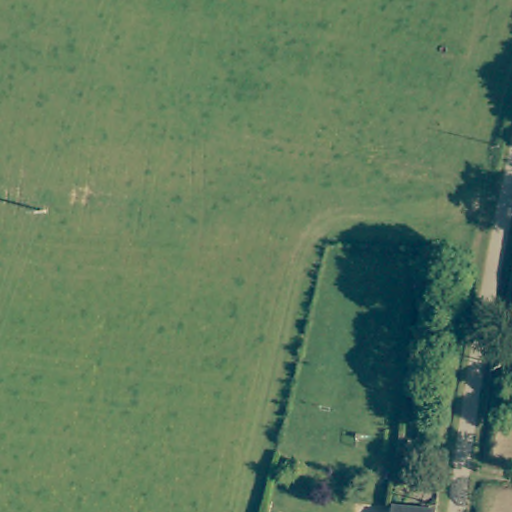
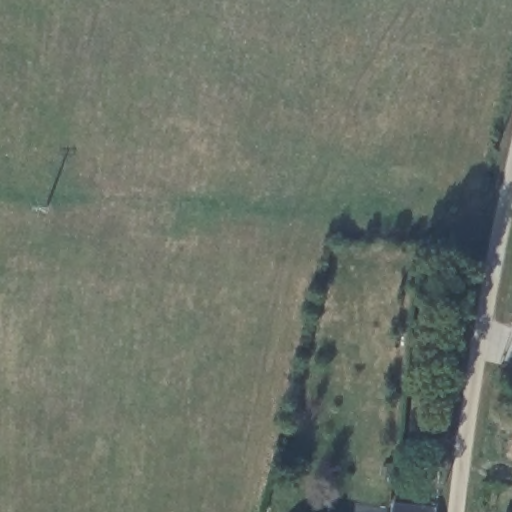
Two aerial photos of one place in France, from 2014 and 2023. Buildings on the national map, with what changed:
unchanged [(435,509),(435,512),(391,512),(392,505),(435,509)]

